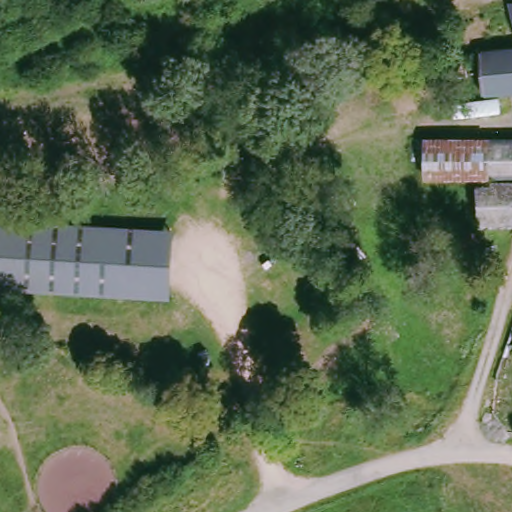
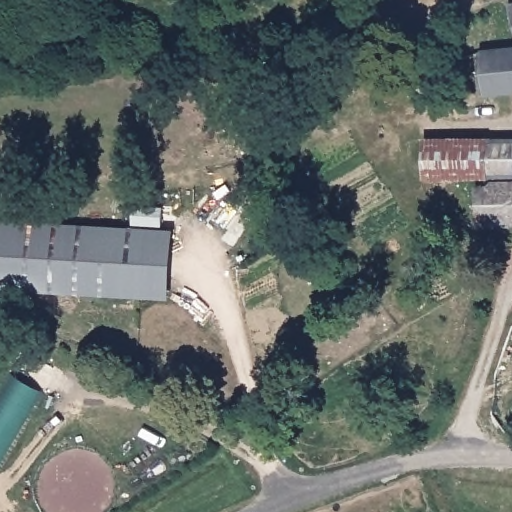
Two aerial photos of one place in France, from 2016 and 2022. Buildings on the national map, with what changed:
unchanged [(512,9),(512,17),(510,9),(512,9)]
unchanged [(512,49),(512,92),(484,94),(482,72),(451,80),(447,61),(481,52),(512,49)]
unchanged [(487,177),(427,176),(427,141),(487,140),(487,177)]
unchanged [(487,177),(487,140),(512,140),(512,177),(487,177)]
unchanged [(480,226),(477,183),(512,182),(512,226),(480,226)]
unchanged [(291,244),(269,252),(265,236),(285,229),(291,244)]
unchanged [(0,237),(147,245),(144,312),(0,304),(0,237)]
unchanged [(144,312),(147,245),(172,246),(168,313),(144,312)]
new [(46,393),(7,474),(0,471),(0,399),(11,376),(46,393)]

